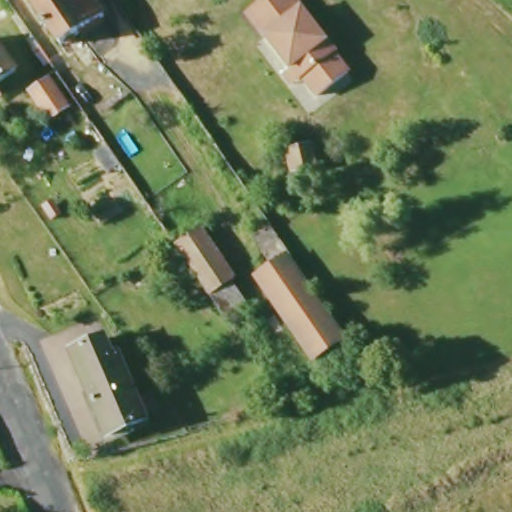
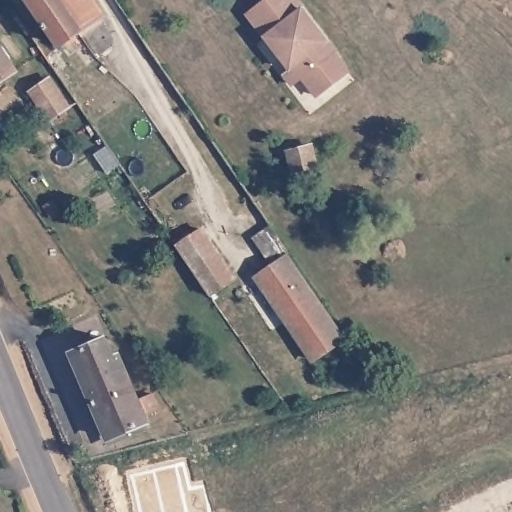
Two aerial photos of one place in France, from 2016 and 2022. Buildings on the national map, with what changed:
unchanged [(94,0),(103,12),(60,42),(29,0),(94,0)]
unchanged [(291,69),(248,10),(261,0),(297,0),(334,51),(332,53),(346,73),(316,95),(301,76),(298,78),(291,83),(284,75),(291,69)]
unchanged [(0,83),(0,47),(16,71),(0,83)]
unchanged [(30,104),(48,89),(68,116),(50,130),(30,104)]
unchanged [(293,169),(289,151),(312,144),(316,163),(293,169)]
unchanged [(191,218),(224,267),(201,284),(166,236),(191,218)]
unchanged [(289,257),(286,259),(343,343),(312,364),(256,281),(273,270),(253,241),(271,229),(289,257)]
unchanged [(201,284),(224,267),(246,298),(221,315),(201,284)]
unchanged [(246,345),(230,320),(251,305),(268,330),(246,345)]
unchanged [(108,437),(73,353),(105,337),(113,355),(117,353),(146,419),(108,437)]

